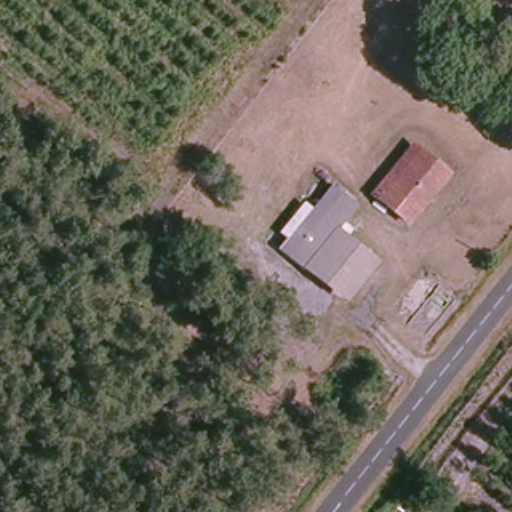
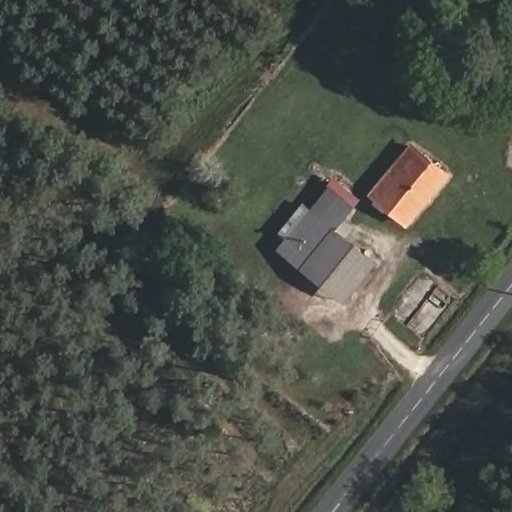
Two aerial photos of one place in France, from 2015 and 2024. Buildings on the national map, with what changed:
unchanged [(441,174),(403,223),(374,202),(412,150),(441,174)]
unchanged [(278,250),(329,185),(357,208),(340,229),(379,263),(346,302),(278,250)]
unchanged [(276,337),(295,302),(310,310),(294,347),(276,337)]

